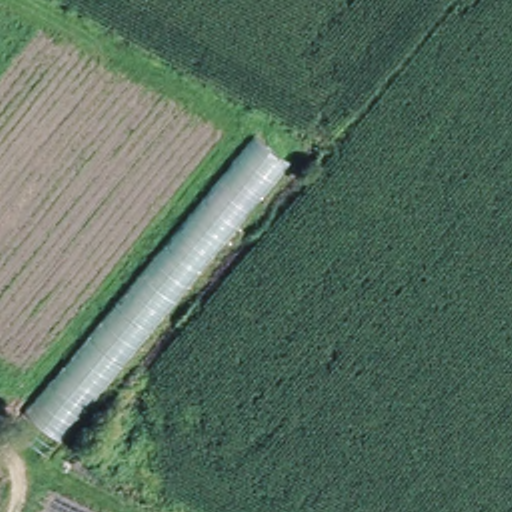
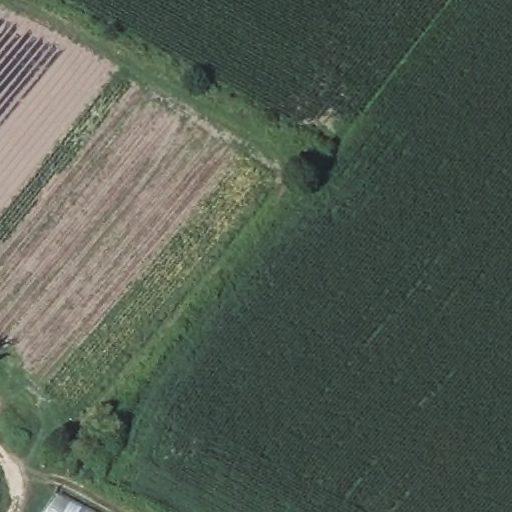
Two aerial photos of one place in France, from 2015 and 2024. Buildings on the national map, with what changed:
demolished [(12,431),(259,137),(292,167),(44,456),(12,431)]
new [(94,512),(44,512),(55,490),(94,512)]

